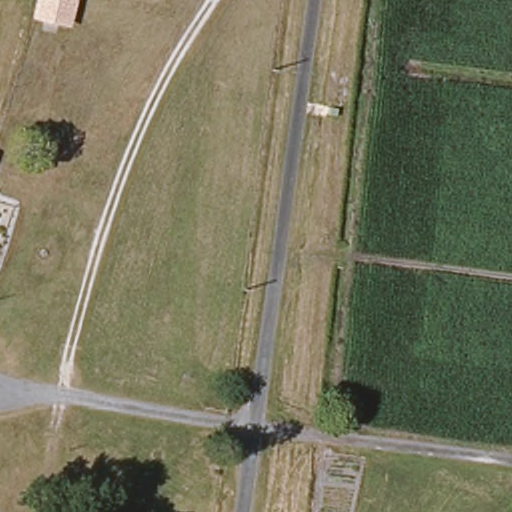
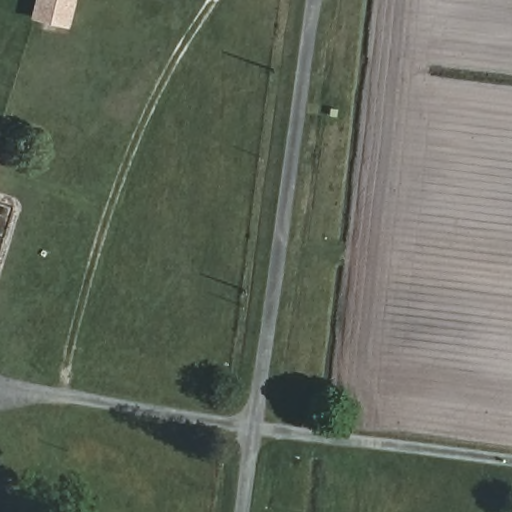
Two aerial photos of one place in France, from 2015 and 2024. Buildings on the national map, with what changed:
unchanged [(66,31),(28,21),(32,0),(74,0),(66,31)]

